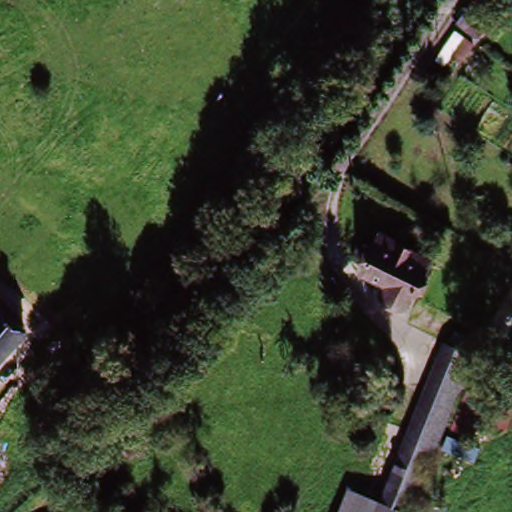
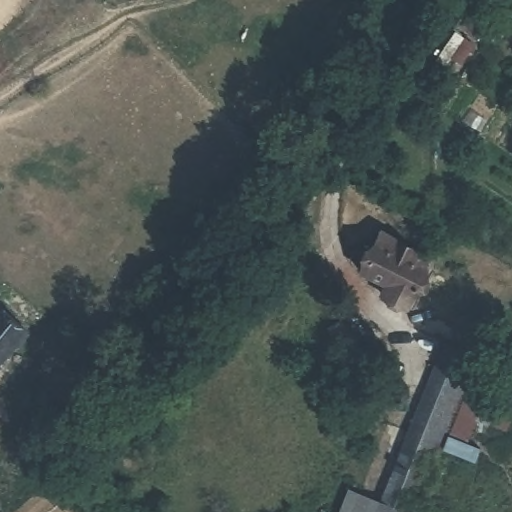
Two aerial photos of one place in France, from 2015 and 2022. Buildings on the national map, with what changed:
unchanged [(433,267),(406,317),(381,303),(386,295),(362,281),(366,273),(357,267),(365,251),(375,257),(384,240),(433,267)]
unchanged [(26,337),(0,364),(0,312),(26,337)]
unchanged [(343,486),(373,500),(389,468),(399,448),(403,442),(421,406),(447,351),(476,363),(467,391),(483,401),(491,382),(512,398),(512,421),(505,435),(477,428),(465,441),(481,450),(474,463),(441,447),(418,492),(407,487),(394,511),(395,512),(330,512),(343,486)]

